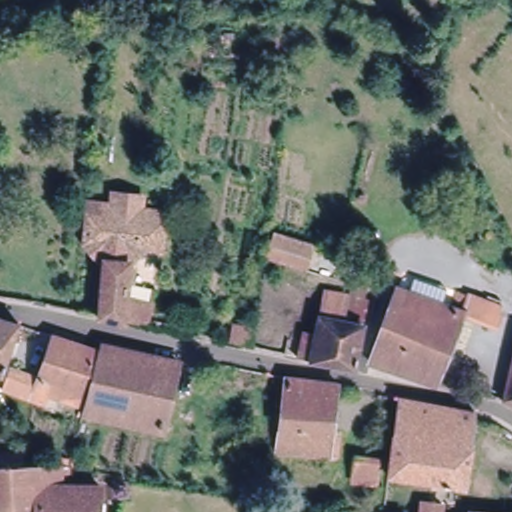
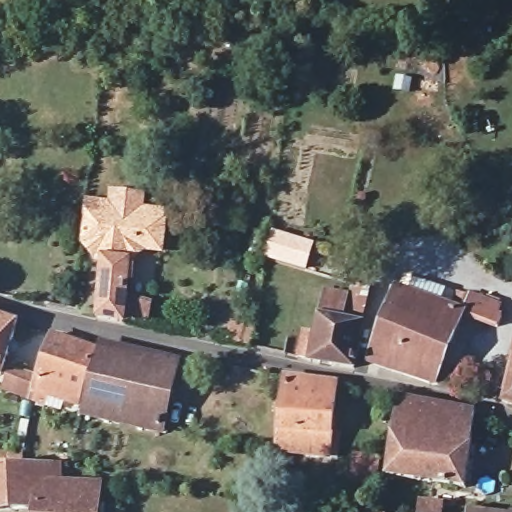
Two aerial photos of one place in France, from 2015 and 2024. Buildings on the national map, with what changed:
unchanged [(115,178),(119,167),(148,174),(145,187),(137,245),(97,238),(80,236),(87,173),(115,178)]
unchanged [(145,187),(178,193),(172,238),(159,236),(133,260),(137,245),(145,187)]
unchanged [(95,311),(107,254),(96,252),(97,238),(137,245),(133,260),(129,276),(145,279),(144,295),(153,298),(149,323),(122,317),(95,311)]
unchanged [(275,264),(279,244),(309,252),(303,275),(275,264)]
unchanged [(292,357),(297,336),(315,339),(323,309),(327,310),(337,275),(340,277),(352,283),(365,287),(363,297),(366,298),(359,326),(368,328),(360,360),(356,373),(292,357)]
unchanged [(370,360),(399,282),(420,289),(450,300),(455,285),(486,295),(484,304),(501,310),(496,324),(463,310),(438,379),(435,387),(370,360)]
unchanged [(0,361),(0,320),(16,326),(0,361)]
unchanged [(222,340),(227,323),(258,329),(254,347),(222,340)]
unchanged [(4,374),(34,386),(54,341),(95,357),(73,418),(41,404),(37,410),(27,406),(28,403),(0,390),(0,382),(4,374)]
unchanged [(95,357),(96,349),(178,367),(164,439),(83,420),(95,357)]
unchanged [(512,368),(512,402),(503,399),(512,368)]
unchanged [(293,386),(344,393),(338,441),(350,443),(347,469),(284,461),(293,386)]
unchanged [(397,445),(404,400),(436,408),(485,418),(467,493),(392,477),(397,445)]
unchanged [(19,463),(15,479),(75,480),(74,496),(109,501),(106,512),(0,512),(0,462),(19,463)]
unchanged [(411,507),(410,512),(398,512),(400,503),(411,507)]
unchanged [(481,512),(458,512),(459,508),(481,512)]

